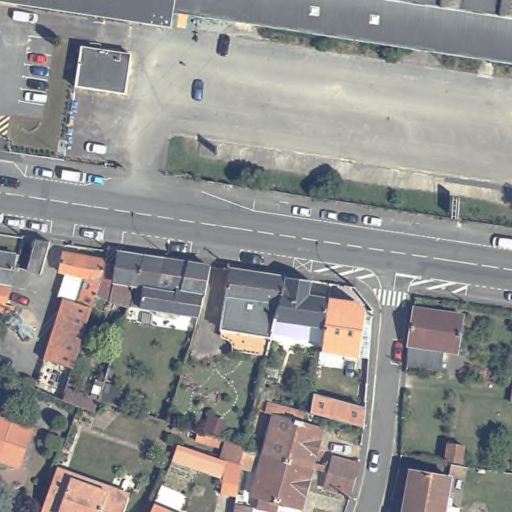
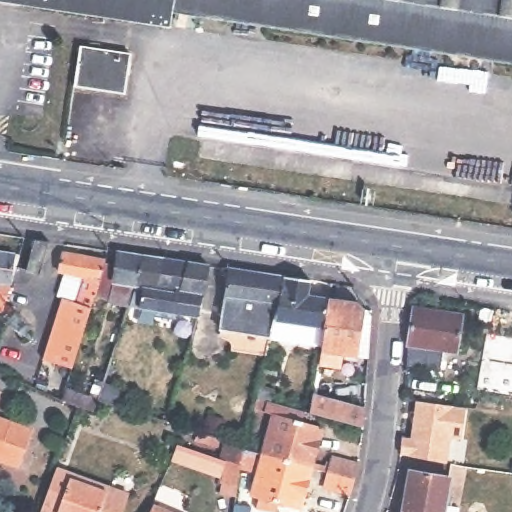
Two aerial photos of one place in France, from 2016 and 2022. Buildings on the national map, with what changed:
unchanged [(168,19),(37,0),(512,0),(512,58),(170,5),(168,19)]
unchanged [(112,50),(111,57),(116,58),(117,51),(135,54),(130,93),(78,86),(85,46),(112,50)]
unchanged [(39,238),(54,240),(44,272),(30,269),(39,238)]
unchanged [(100,287),(110,257),(122,258),(124,246),(169,253),(213,260),(206,306),(205,312),(160,306),(135,302),(137,293),(100,287)]
unchanged [(79,282),(57,278),(67,248),(110,255),(110,257),(100,287),(86,336),(70,331),(78,303),(83,304),(85,299),(76,296),(79,282)]
unchanged [(0,294),(0,251),(14,253),(11,283),(7,294),(0,294)]
unchanged [(291,272),(279,330),(252,326),(255,307),(228,303),(234,263),(291,272)]
unchanged [(279,330),(291,272),(315,276),(314,285),(334,288),(333,293),(326,336),(296,331),(295,339),(278,336),(279,330)]
unchanged [(326,336),(333,293),(363,297),(371,305),(363,352),(325,346),(326,336)]
unchanged [(413,346),(419,308),(467,316),(460,354),(435,350),(432,370),(412,367),(413,346)]
unchanged [(283,407),(286,398),(276,396),(279,382),(293,386),(290,400),(307,404),(305,413),(338,422),(327,463),(278,449),(289,409),(283,407)]
unchanged [(350,399),(373,405),(369,421),(346,415),(350,399)]
new [(412,442),(417,403),(467,410),(463,441),(451,440),(448,465),(402,458),(403,440),(412,442)]
unchanged [(16,466),(0,461),(0,418),(30,429),(16,466)]
unchanged [(220,432),(216,443),(197,437),(201,426),(220,432)]
unchanged [(195,441),(235,456),(241,458),(236,472),(189,455),(195,441)]
unchanged [(451,446),(468,449),(465,465),(448,463),(451,446)]
unchanged [(327,463),(316,503),(294,497),(292,506),(273,501),(275,492),(268,490),(278,449),(327,463)]
unchanged [(334,458),(360,464),(356,480),(352,497),(326,490),(330,473),(334,458)]
unchanged [(256,495),(238,489),(248,461),(262,466),(256,495)]
unchanged [(57,474),(59,467),(77,473),(78,471),(115,484),(115,488),(133,494),(127,512),(50,512),(44,510),(57,474)]
unchanged [(414,471),(457,478),(452,512),(408,512),(414,471)]
unchanged [(256,497),(271,501),(269,512),(234,512),(235,502),(254,509),(256,497)]
unchanged [(158,506),(172,512),(156,512),(158,506)]

